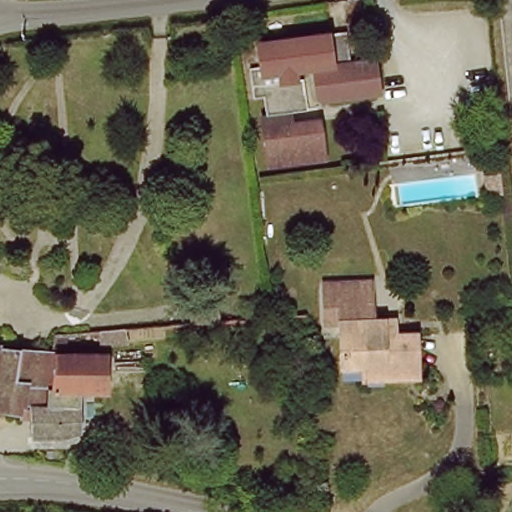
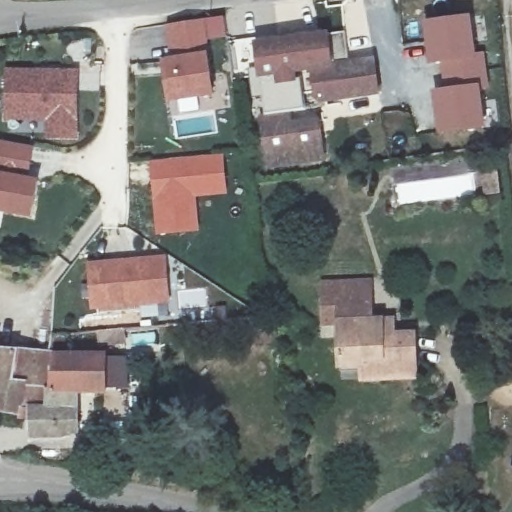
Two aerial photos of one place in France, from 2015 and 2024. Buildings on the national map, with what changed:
new [(470,12),(477,51),(485,50),(491,88),(482,89),(487,129),(436,135),(429,88),(442,86),(438,64),(426,66),(421,19),(470,12)]
new [(174,102),(169,59),(167,24),(204,20),(210,52),(216,98),(174,102)]
unchanged [(291,99),(243,95),(241,81),(255,79),(252,49),(295,42),(339,37),(343,68),(367,65),(371,64),(375,100),(370,100),(319,106),(313,102),(312,91),(310,72),(286,75),(288,96),(294,96),(294,98),(291,99)]
new [(49,140),(48,121),(7,121),(9,68),(83,69),(80,140),(49,140)]
unchanged [(294,98),(297,126),(307,127),(309,140),(311,176),(256,182),(254,162),(251,133),(255,131),(254,111),(244,113),(243,95),(291,99),(294,98)]
new [(41,180),(33,217),(0,211),(0,142),(36,149),(31,178),(41,180)]
new [(197,199),(200,234),(158,236),(152,163),(225,156),(228,195),(197,199)]
unchanged [(484,177),(495,174),(499,202),(487,203),(484,177)]
new [(94,311),(89,261),(167,256),(172,305),(94,311)]
unchanged [(416,373),(359,378),(357,363),(338,365),(334,322),(320,322),(316,286),(322,283),(324,283),(363,279),(364,290),(366,318),(378,317),(389,316),(390,332),(412,330),(416,373)]
unchanged [(107,350),(105,337),(129,335),(131,347),(107,350)]
unchanged [(29,395),(27,407),(26,419),(14,417),(0,415),(0,351),(6,351),(5,354),(58,358),(53,396),(29,395)]
unchanged [(27,407),(29,395),(53,396),(57,397),(61,359),(109,359),(107,397),(82,396),(83,437),(66,440),(39,441),(37,423),(25,421),(26,419),(27,407)]

